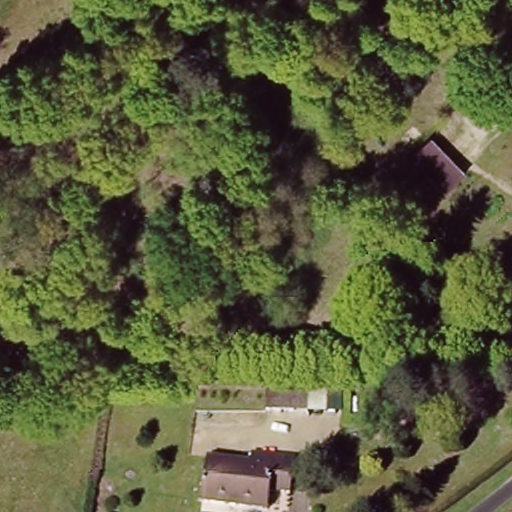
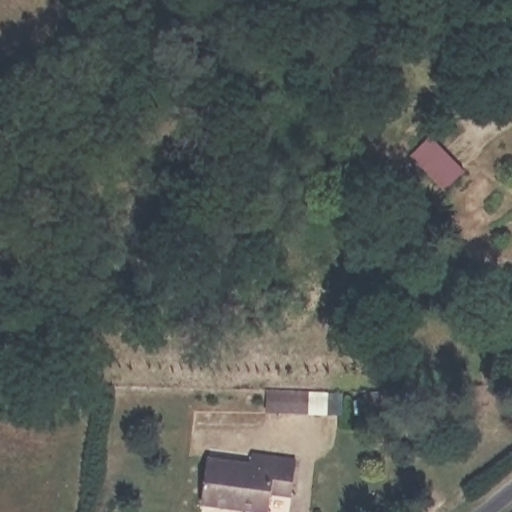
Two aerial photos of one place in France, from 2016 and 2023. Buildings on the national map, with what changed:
unchanged [(432,133),(465,171),(445,190),(410,152),(432,133)]
unchanged [(269,412),(270,392),(312,392),(312,413),(269,412)]
unchanged [(242,506),(199,501),(205,452),(247,458),(249,450),(294,456),(289,492),(270,490),(270,496),(267,508),(242,506)]

